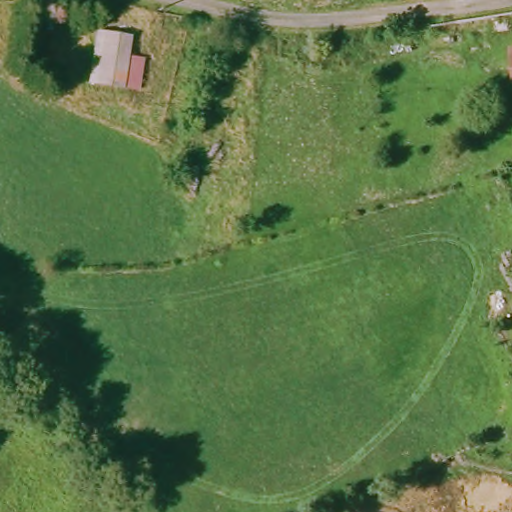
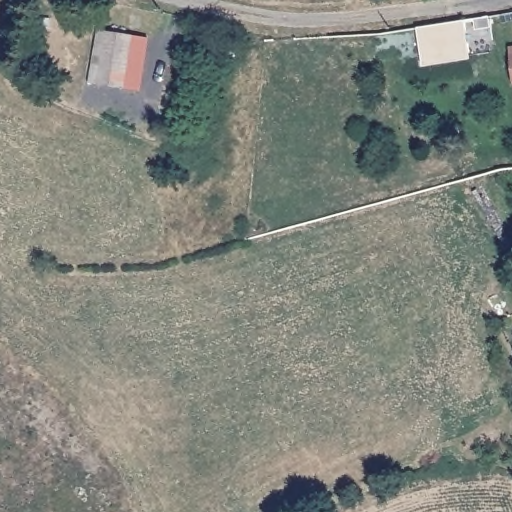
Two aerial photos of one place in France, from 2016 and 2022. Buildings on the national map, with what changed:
new [(422,64),(417,27),(463,20),(469,59),(422,64)]
unchanged [(135,35),(132,57),(148,59),(142,89),(95,81),(101,29),(135,35)]
new [(508,46),(512,46),(512,80),(508,46)]

